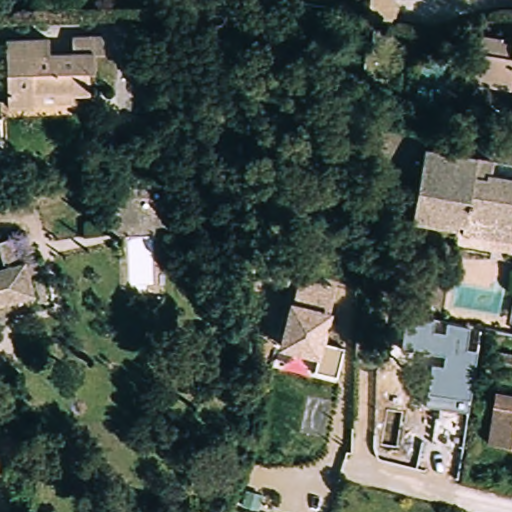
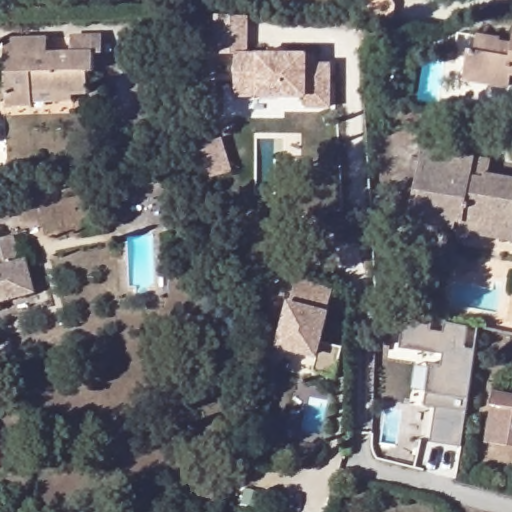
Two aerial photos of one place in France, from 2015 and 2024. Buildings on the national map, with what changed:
unchanged [(387,23),(367,22),(369,0),(388,0),(387,23)]
new [(248,17),(246,56),(268,57),(268,51),(284,52),(284,58),(314,59),(314,70),(329,70),(326,112),(303,111),(304,100),(233,97),(236,55),(216,54),(218,15),(248,17)]
unchanged [(33,97),(33,100),(7,101),(5,34),(45,33),(45,49),(71,48),(71,32),(103,31),(103,48),(94,49),(95,67),(88,67),(89,88),(73,89),(73,96),(33,97)]
unchanged [(511,87),(464,79),(469,52),(475,53),(478,35),(499,38),(498,42),(512,44),(512,79),(511,87)]
new [(213,179),(210,169),(201,145),(221,139),(228,163),(231,172),(213,179)]
unchanged [(412,221),(424,149),(489,161),(487,174),(512,178),(512,239),(412,221)]
unchanged [(3,304),(4,309),(0,310),(0,269),(10,267),(3,242),(16,238),(23,263),(29,262),(38,294),(3,304)]
unchanged [(278,354),(280,346),(297,279),(334,288),(317,355),(315,363),(278,354)]
unchanged [(431,363),(442,365),(443,355),(401,348),(407,312),(436,318),(434,329),(445,331),(446,321),(470,325),(466,347),(479,349),(469,411),(424,405),(431,363)]
unchanged [(488,437),(496,388),(512,390),(512,440),(488,437)]

